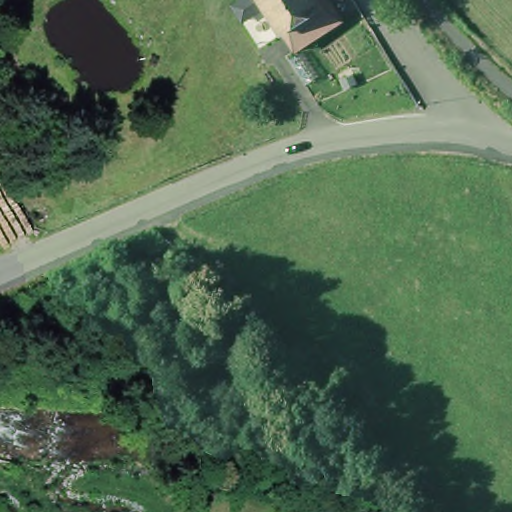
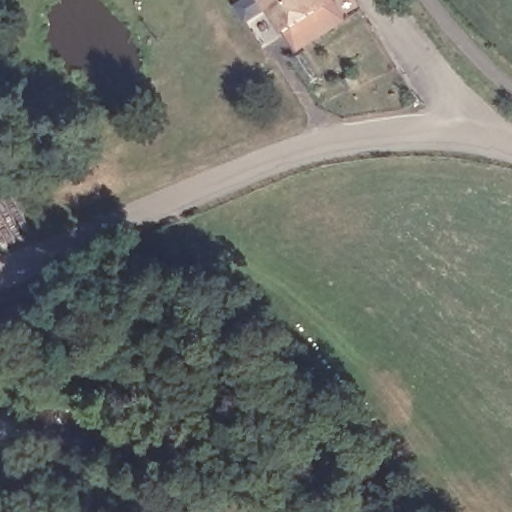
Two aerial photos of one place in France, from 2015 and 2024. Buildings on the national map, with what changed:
unchanged [(271,0),(327,0),(337,15),(297,41),(270,0),(271,0)]

